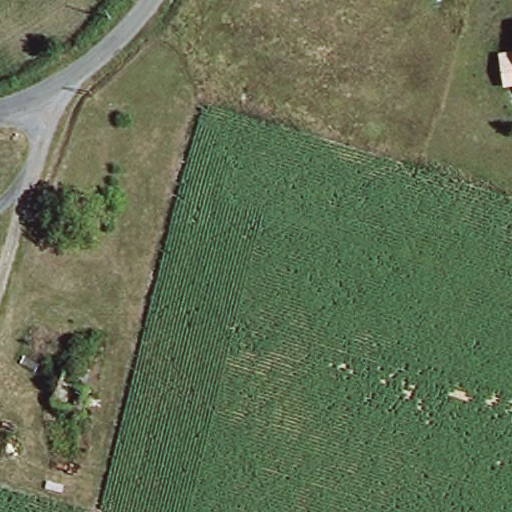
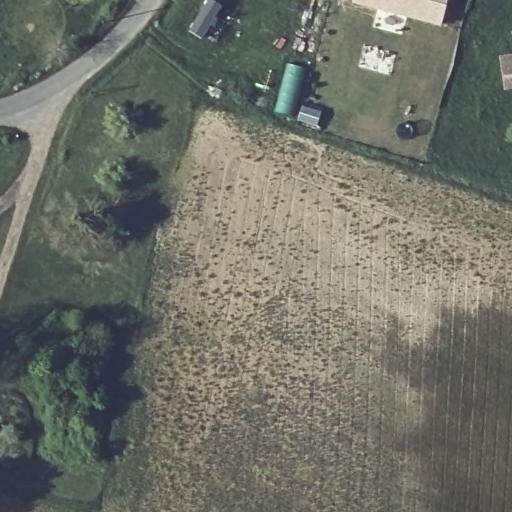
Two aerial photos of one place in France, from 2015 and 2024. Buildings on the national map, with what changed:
new [(448,0),(442,25),(354,3),(354,0),(448,0)]

